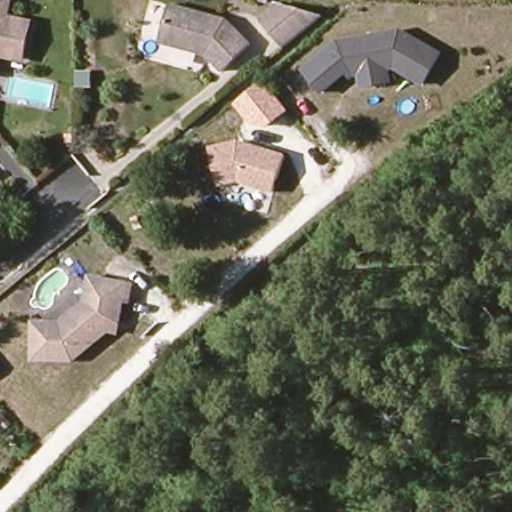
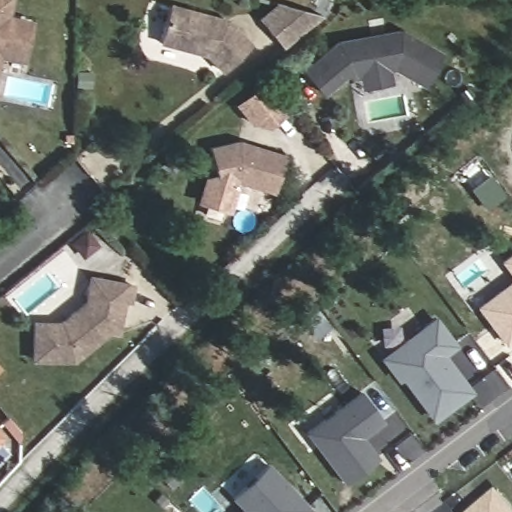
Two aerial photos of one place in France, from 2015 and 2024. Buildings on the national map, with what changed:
unchanged [(5,14),(9,15),(12,21),(29,24),(22,54),(6,51),(0,55),(0,0),(8,0),(5,14)]
unchanged [(285,50),(270,33),(260,22),(279,6),(287,7),(297,10),(323,17),(285,50)]
unchanged [(225,75),(206,58),(158,46),(167,10),(225,24),(250,47),(225,75)]
unchanged [(336,40),(397,28),(445,52),(425,87),(395,71),(390,72),(392,86),(363,90),(357,76),(348,77),(323,98),(301,71),(336,40)]
new [(259,82),(282,110),(262,126),(245,121),(232,105),(259,82)]
unchanged [(238,141),(288,155),(275,194),(237,182),(230,215),(194,205),(202,177),(214,174),(208,147),(238,141)]
new [(512,253),(512,274),(502,261),(512,253)]
unchanged [(31,322),(60,323),(82,301),(88,276),(136,284),(133,305),(125,303),(119,336),(108,335),(74,363),(30,362),(31,322)]
new [(512,336),(505,342),(478,307),(512,281),(512,336)]
new [(433,422),(430,422),(381,357),(435,316),(457,347),(445,356),(473,392),(433,422)]
new [(359,392),(381,420),(360,437),(376,457),(343,482),(305,432),(359,392)]
new [(230,499),(265,466),(308,511),(307,512),(241,512),(242,511),(230,499)]
new [(512,511),(512,512),(471,512),(495,491),(512,511)]

